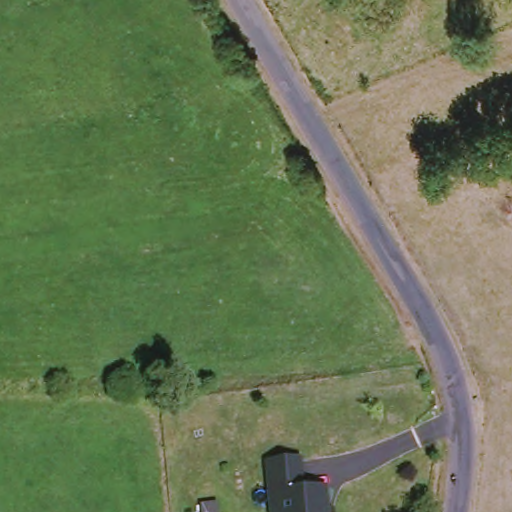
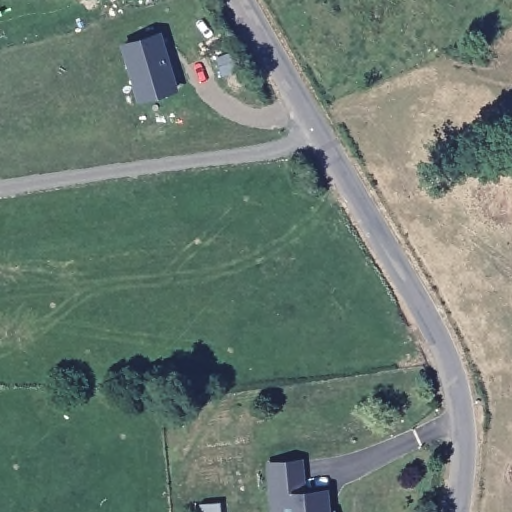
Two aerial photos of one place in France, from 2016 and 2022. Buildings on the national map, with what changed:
new [(157,31),(172,86),(137,96),(121,41),(157,31)]
unchanged [(307,460),(310,491),(332,490),(334,511),(340,511),(341,512),(279,512),(275,462),(307,460)]

